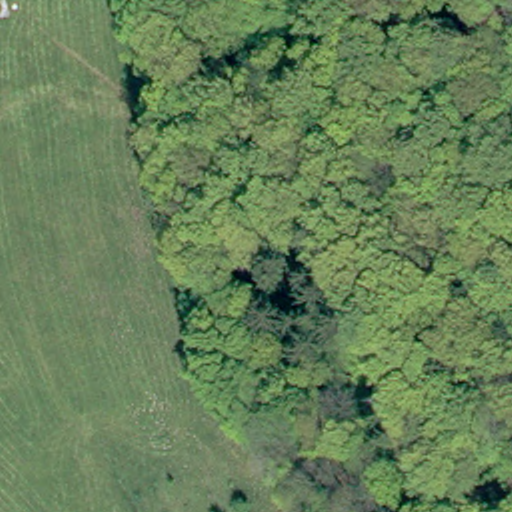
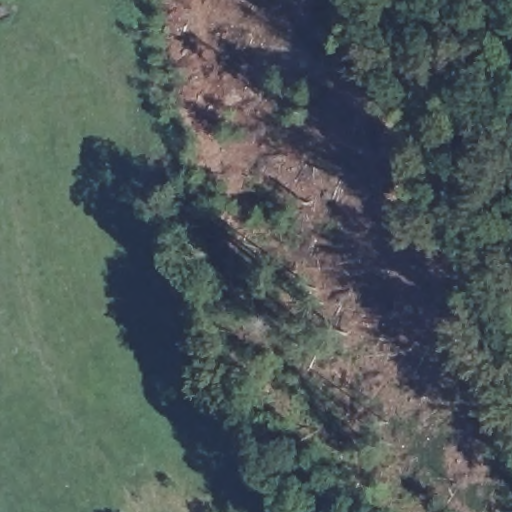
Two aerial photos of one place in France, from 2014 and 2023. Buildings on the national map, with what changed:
[]

